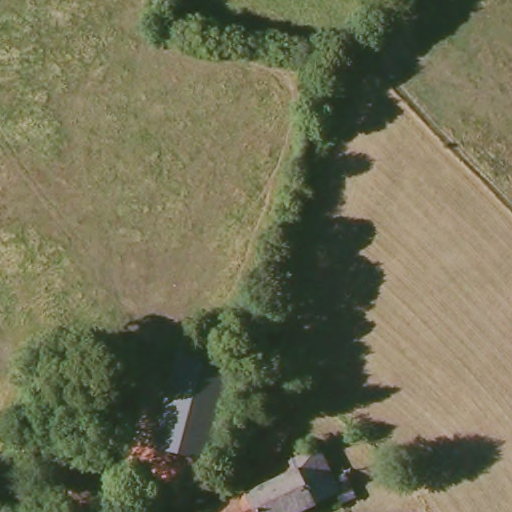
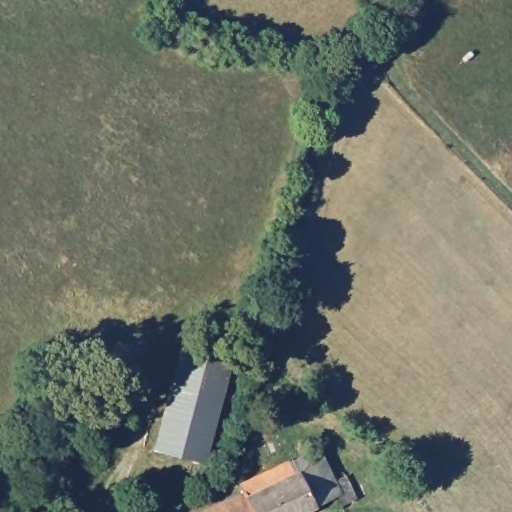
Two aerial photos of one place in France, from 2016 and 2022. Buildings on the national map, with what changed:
unchanged [(213,462),(164,454),(167,431),(182,356),(231,365),(213,462)]
unchanged [(341,486),(352,481),(361,500),(347,506),(342,497),(312,512),(213,512),(246,497),(245,490),(324,453),(341,486)]

